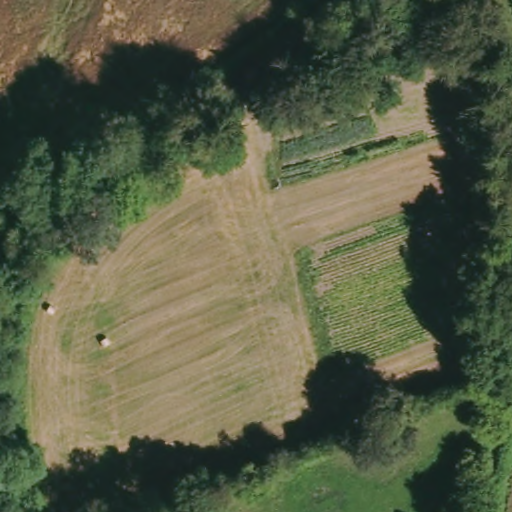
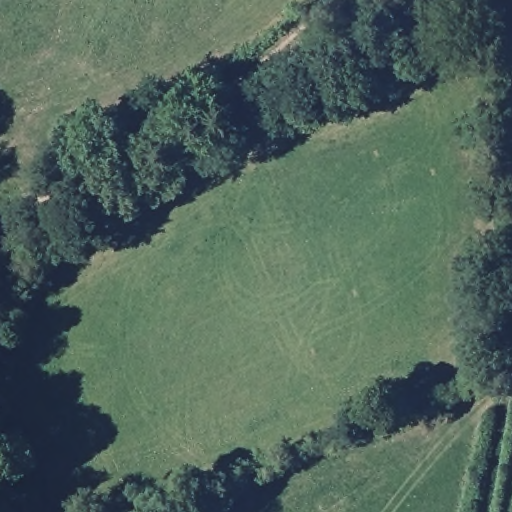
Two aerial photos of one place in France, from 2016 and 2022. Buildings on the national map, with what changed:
unchanged [(64,225),(60,235),(43,229),(49,219),(64,225)]

